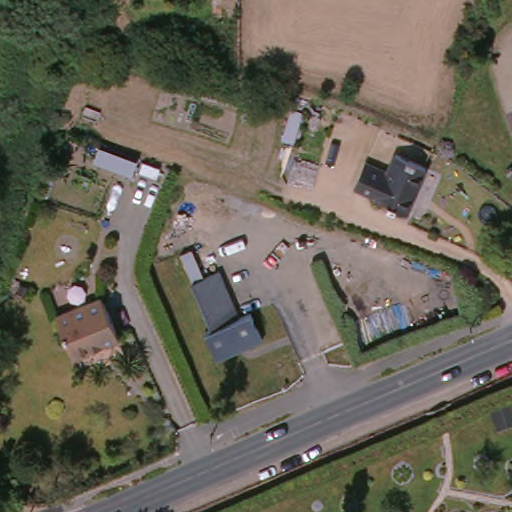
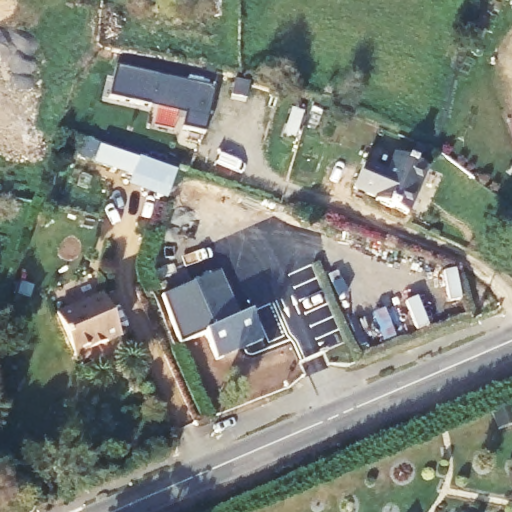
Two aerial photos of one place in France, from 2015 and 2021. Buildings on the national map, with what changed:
new [(120,61),(218,86),(206,134),(183,128),(187,113),(111,94),(120,61)]
new [(294,105),(304,110),(294,139),(283,135),(294,105)]
new [(95,159),(101,145),(139,159),(140,156),(176,170),(169,191),(132,177),(134,172),(95,159)]
unchanged [(428,172),(413,213),(351,194),(360,165),(390,175),(395,159),(428,172)]
unchanged [(205,339),(214,332),(177,250),(208,233),(247,320),(256,315),(267,342),(220,365),(205,339)]
unchanged [(97,298),(116,337),(71,357),(53,317),(97,298)]

